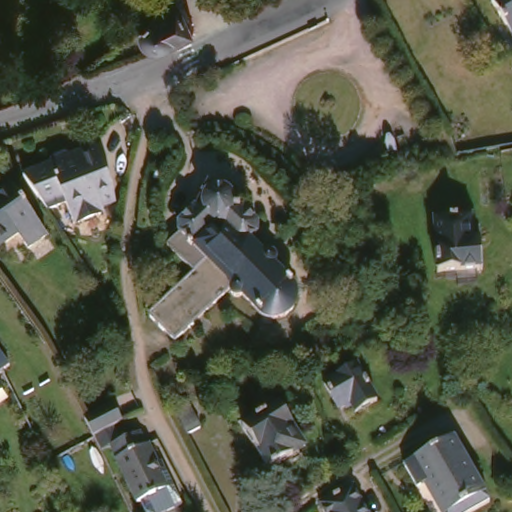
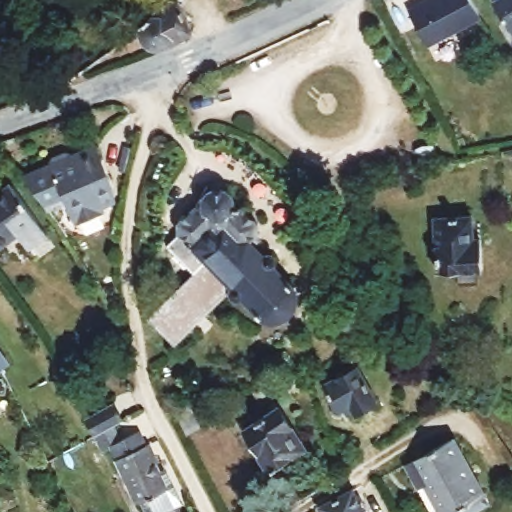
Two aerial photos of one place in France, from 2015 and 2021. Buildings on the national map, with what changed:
unchanged [(160,53),(153,55),(146,54),(143,50),(140,46),(141,35),(140,30),(173,0),(174,0),(175,1),(192,38),(160,53)]
new [(425,0),(470,0),(479,18),(428,46),(408,9),(425,0)]
unchanged [(509,36),(489,2),(493,0),(512,0),(512,35),(509,36)]
unchanged [(116,181),(119,198),(106,203),(108,208),(78,220),(70,197),(52,205),(47,198),(28,171),(82,150),(102,143),(116,181)]
unchanged [(512,151),(512,170),(510,159),(510,151),(512,151)]
unchanged [(225,179),(229,180),(233,182),(236,185),(238,189),(239,193),(240,197),(243,197),(258,215),(260,225),(254,232),(268,247),(270,245),(273,245),(276,245),(278,247),(280,250),(281,252),(280,255),(278,257),(297,276),(300,280),(302,285),(302,290),(302,295),(300,300),(297,304),(293,307),(289,310),(284,311),(279,311),(274,311),(269,309),(265,306),(246,287),(244,290),(241,290),(238,290),(236,287),(234,285),(180,337),(155,312),(211,254),(197,240),(196,242),(191,238),(192,235),(185,227),(184,219),(200,202),(206,201),(205,197),(205,192),(206,189),(209,185),(212,182),(216,180),(220,179),(225,179)]
unchanged [(32,249),(23,235),(0,249),(0,196),(20,184),(53,236),(32,249)]
unchanged [(484,215),(487,257),(442,261),(438,209),(476,206),(477,215),(484,215)]
unchanged [(11,370),(3,376),(0,379),(0,356),(1,358),(11,370)]
unchanged [(379,395),(358,407),(354,399),(342,405),(329,380),(362,362),(379,395)]
unchanged [(0,398),(0,388),(4,396),(0,398)]
unchanged [(302,445),(305,450),(294,457),(291,452),(273,463),(246,420),(282,398),(308,441),(302,445)]
unchanged [(201,418),(191,425),(179,406),(188,400),(201,418)]
unchanged [(164,467),(167,465),(176,483),(180,481),(195,512),(150,512),(135,482),(138,481),(132,467),(123,472),(115,457),(111,460),(102,442),(133,427),(142,443),(132,449),(139,464),(157,455),(164,467)]
unchanged [(473,506),(477,512),(442,512),(424,480),(412,459),(462,429),(494,484),(498,492),(473,506)]
unchanged [(329,507),(361,488),(374,512),(332,512),(329,507)]

